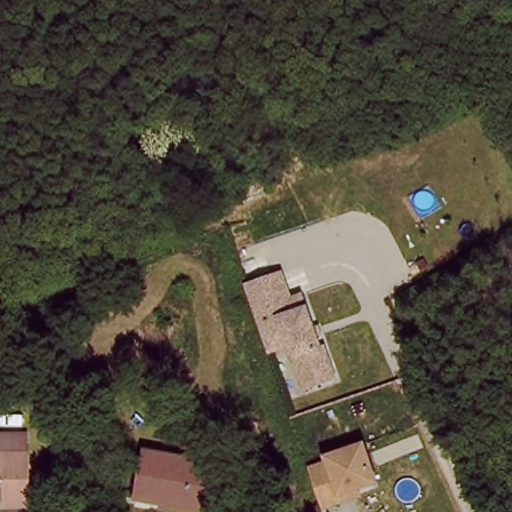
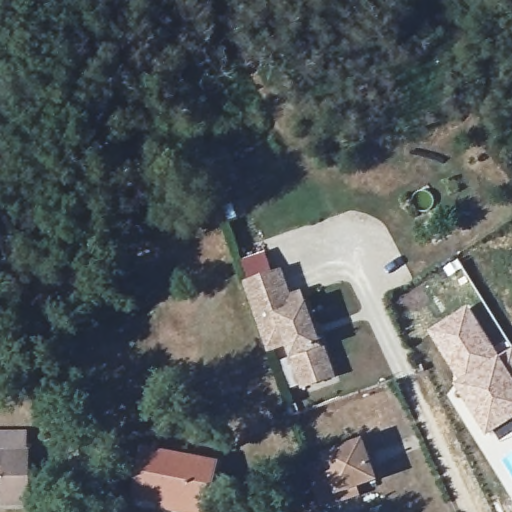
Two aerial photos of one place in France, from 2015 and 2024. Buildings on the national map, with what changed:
unchanged [(283,392),(241,286),(279,272),(289,299),(298,296),(327,378),(283,392)]
new [(501,353),(512,347),(512,422),(484,440),(460,403),(448,391),(454,383),(454,381),(449,369),(426,331),(469,304),(501,353)]
unchanged [(0,483),(0,430),(19,429),(21,447),(24,447),(28,501),(4,502),(2,483),(0,483)]
unchanged [(318,498),(316,490),(312,457),(332,454),(331,448),(370,441),(375,481),(355,484),(355,492),(318,498)]
unchanged [(169,506),(170,499),(144,495),(150,447),(223,459),(216,506),(215,512),(208,512),(169,506)]

